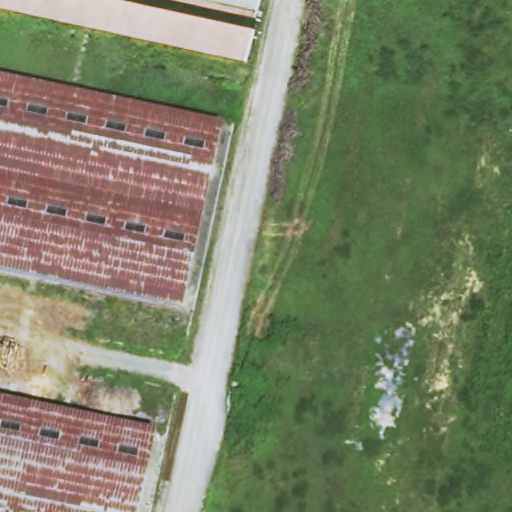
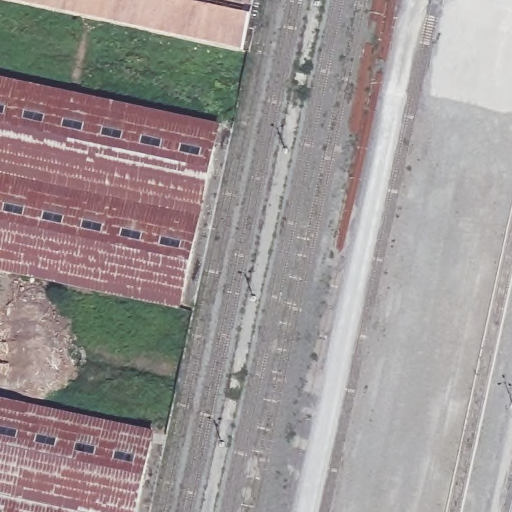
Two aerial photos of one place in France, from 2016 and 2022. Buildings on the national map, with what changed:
unchanged [(0,3),(0,0),(259,0),(247,56),(0,3)]
unchanged [(224,129),(184,313),(0,273),(0,80),(132,109),(224,129)]
unchanged [(157,437),(140,512),(0,512),(0,402),(41,411),(157,437)]

